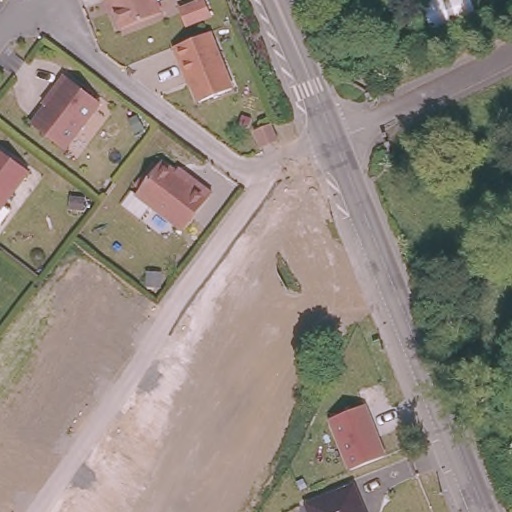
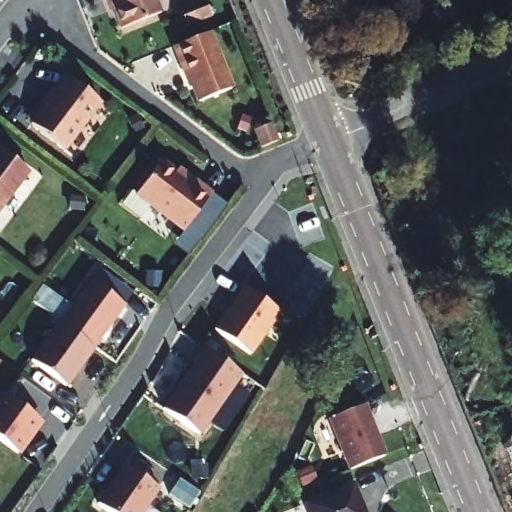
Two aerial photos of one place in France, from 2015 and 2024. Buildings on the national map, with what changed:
unchanged [(112,0),(157,0),(162,11),(122,26),(112,0)]
unchanged [(211,18),(187,28),(181,11),(205,2),(211,18)]
unchanged [(200,101),(189,74),(186,76),(173,45),(209,30),(232,87),(200,101)]
unchanged [(32,124),(57,91),(55,89),(65,75),(100,103),(65,149),(32,124)]
unchanged [(277,123),(283,139),(267,146),(260,129),(277,123)]
unchanged [(0,206),(0,145),(30,168),(0,206)]
unchanged [(152,199),(140,213),(120,198),(131,183),(137,189),(162,156),(197,182),(202,177),(213,187),(185,224),(152,199)]
new [(58,323),(87,280),(124,308),(95,348),(58,323)]
new [(280,313),(250,355),(215,330),(245,288),(280,313)]
new [(93,348),(65,387),(30,361),(58,323),(93,348)]
new [(161,409),(202,349),(242,378),(203,436),(161,409)]
new [(0,399),(3,394),(38,420),(30,432),(32,433),(17,454),(0,442),(0,399)]
unchanged [(360,403),(382,452),(346,467),(327,417),(360,403)]
new [(507,438),(512,436),(512,453),(507,438)]
new [(142,512),(110,512),(97,504),(125,465),(157,488),(142,512)]
unchanged [(307,506),(355,487),(363,509),(365,512),(310,512),(307,506)]

